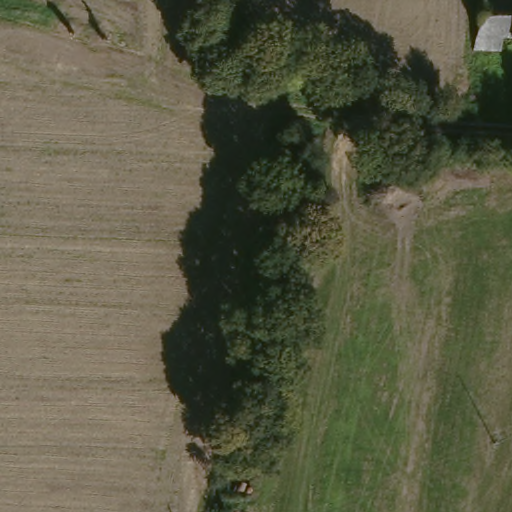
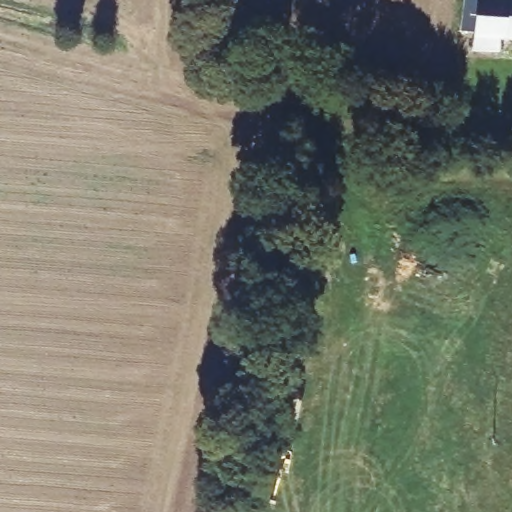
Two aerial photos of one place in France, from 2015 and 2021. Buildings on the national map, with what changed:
unchanged [(512,4),(512,42),(511,42),(509,54),(481,53),(484,3),(512,4)]

